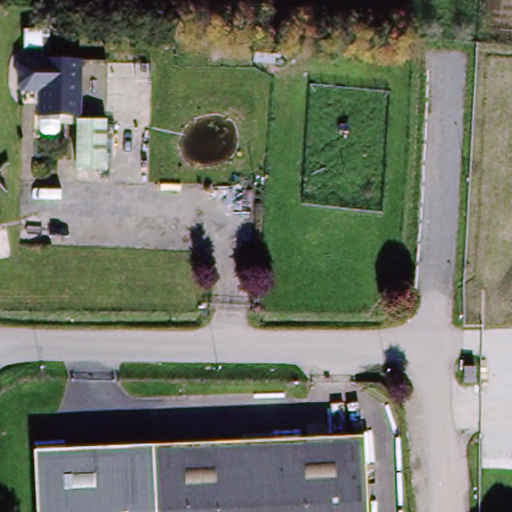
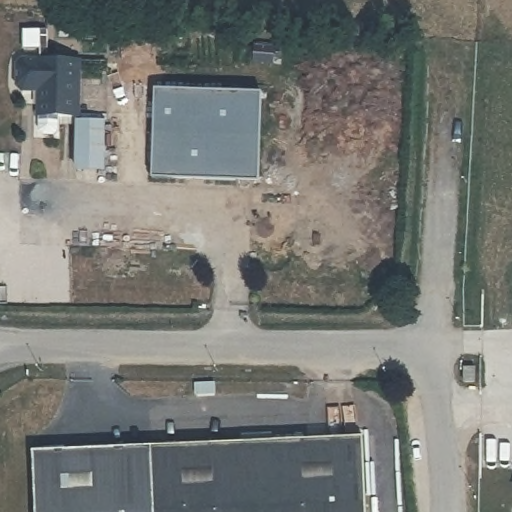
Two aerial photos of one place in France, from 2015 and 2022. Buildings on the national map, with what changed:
unchanged [(42,135),(42,120),(36,119),(36,95),(22,93),(23,62),(40,63),(39,52),(27,51),(28,32),(51,33),(49,61),(81,64),(81,119),(61,119),(61,134),(42,135)]
new [(152,83),(237,84),(237,173),(151,172),(152,83)]
new [(237,84),(259,84),(257,173),(237,173),(237,84)]
unchanged [(78,169),(81,143),(81,125),(106,124),(105,145),(105,172),(78,169)]
unchanged [(157,512),(153,451),(364,440),(368,512),(157,512)]
unchanged [(156,512),(36,512),(34,455),(153,451),(154,463),(156,512)]

